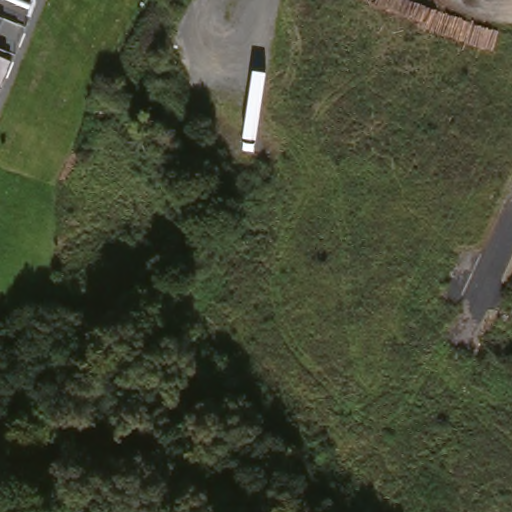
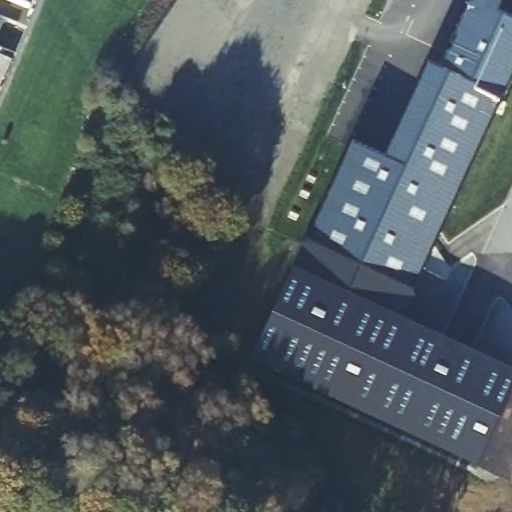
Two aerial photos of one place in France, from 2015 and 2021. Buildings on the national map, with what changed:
new [(353,140),(386,155),(428,59),(439,63),(467,0),(505,0),(498,16),(512,22),(512,90),(406,317),(512,367),(512,405),(484,465),(256,360),(353,140)]

